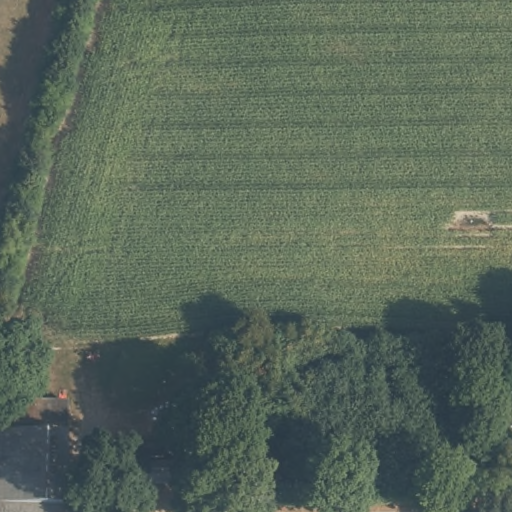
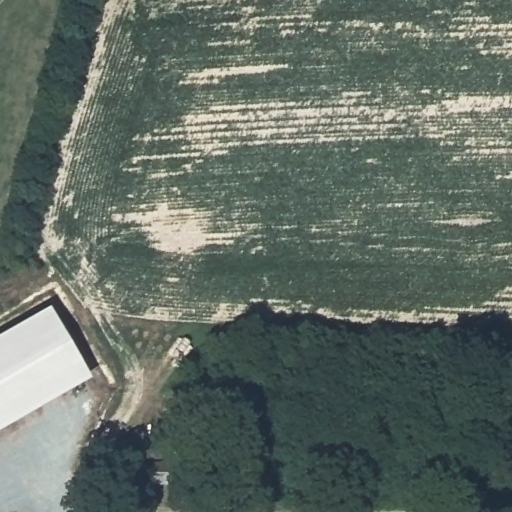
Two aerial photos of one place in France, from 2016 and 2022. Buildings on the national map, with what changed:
new [(51,304),(92,377),(0,430),(0,334),(51,304)]
unchanged [(168,475),(104,475),(105,458),(168,459),(168,475)]

